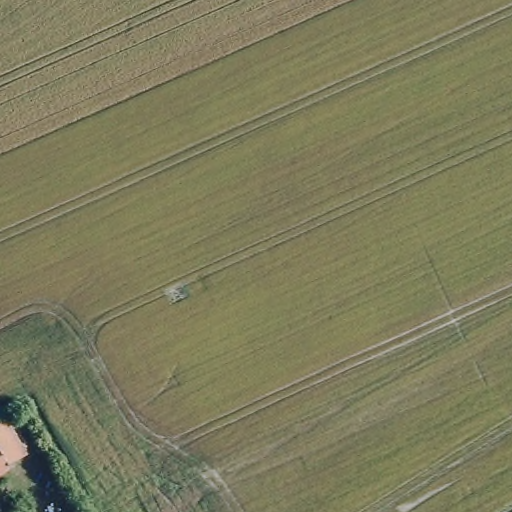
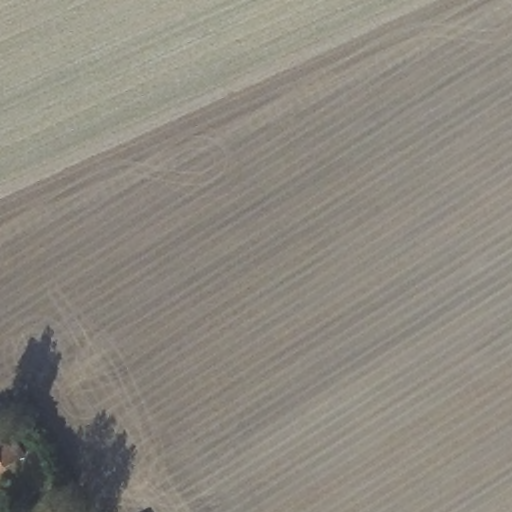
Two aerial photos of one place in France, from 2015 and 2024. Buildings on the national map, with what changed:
unchanged [(0,471),(0,429),(6,426),(24,459),(0,471)]
unchanged [(54,512),(19,512),(51,494),(59,509),(54,512)]

